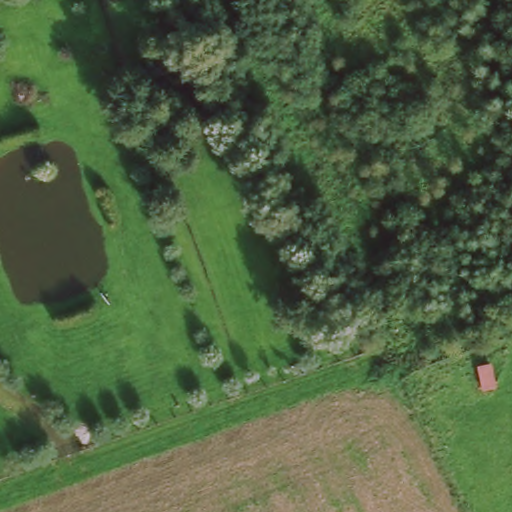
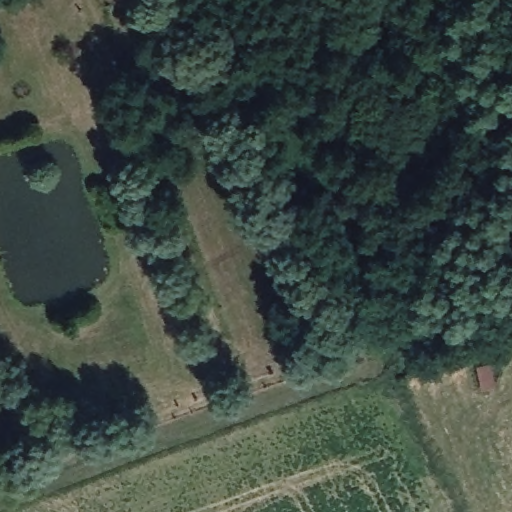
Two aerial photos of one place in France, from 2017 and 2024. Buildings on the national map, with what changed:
unchanged [(495,392),(476,393),(472,368),(494,365),(495,392)]

